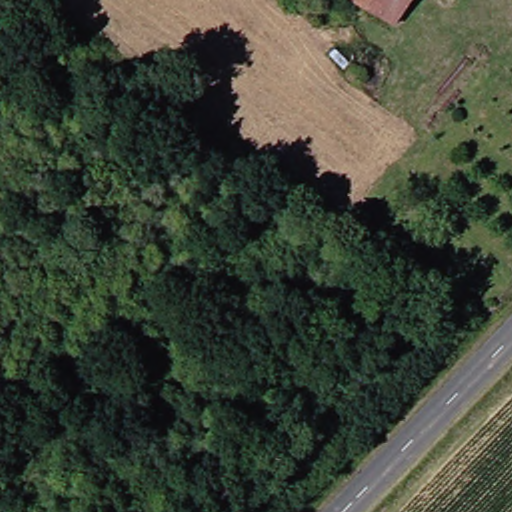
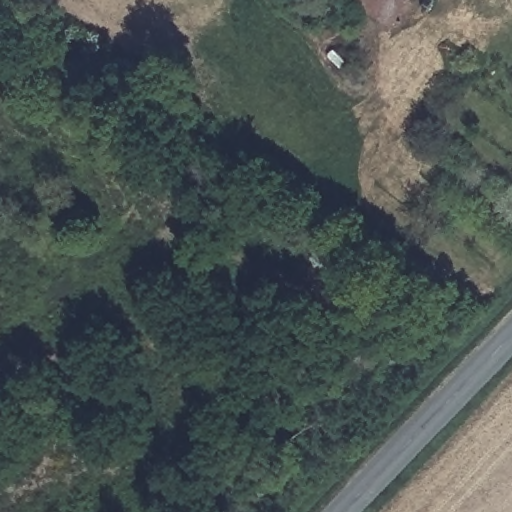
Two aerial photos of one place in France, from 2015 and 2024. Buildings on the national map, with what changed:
unchanged [(355,0),(394,0),(377,20),(355,0)]

